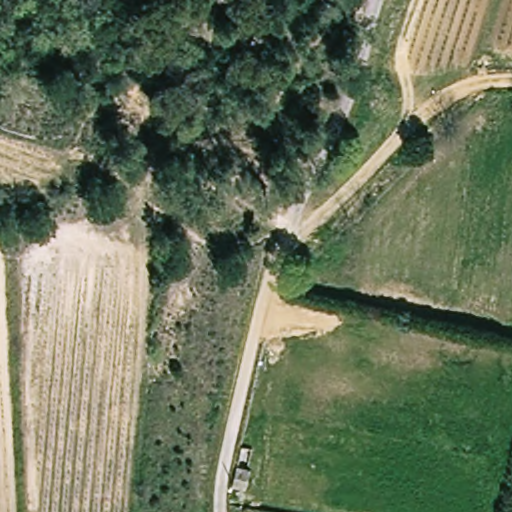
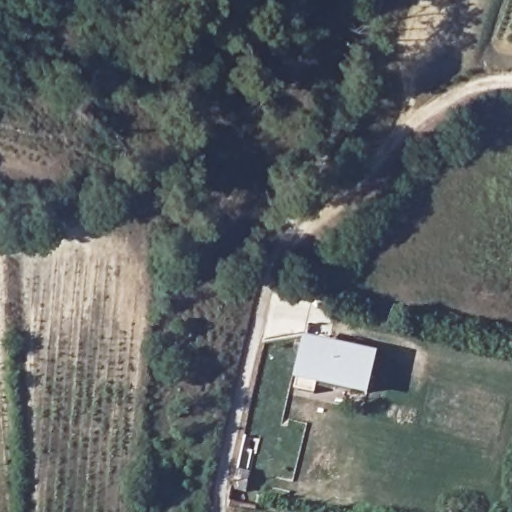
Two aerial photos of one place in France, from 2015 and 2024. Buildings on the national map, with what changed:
new [(367,397),(294,381),(304,340),(378,355),(367,397)]
unchanged [(241,462),(256,465),(253,486),(237,483),(241,462)]

